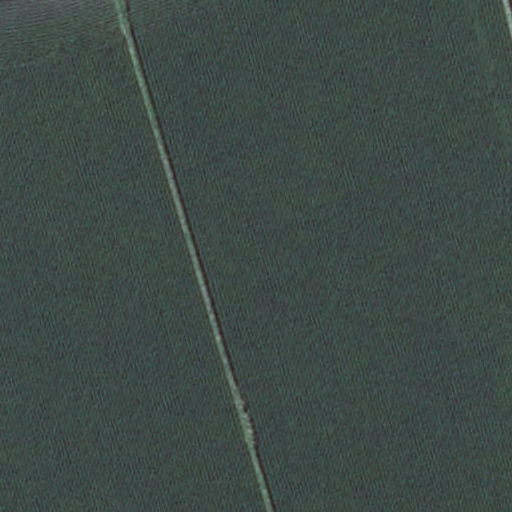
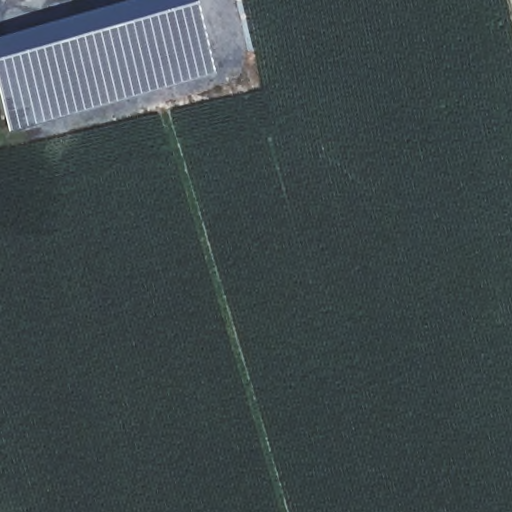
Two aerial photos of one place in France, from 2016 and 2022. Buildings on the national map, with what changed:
new [(0,112),(0,41),(142,0),(191,0),(212,76),(6,135),(0,112)]

